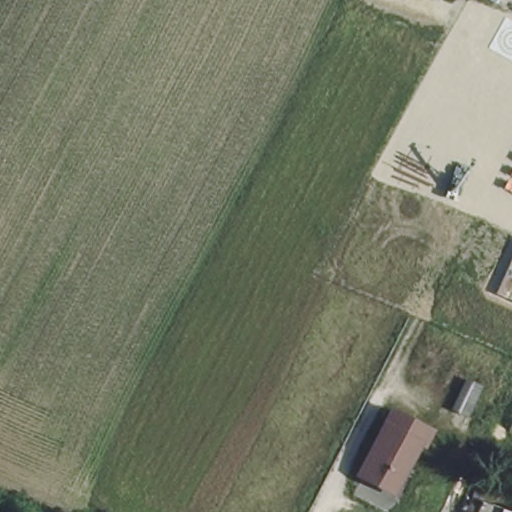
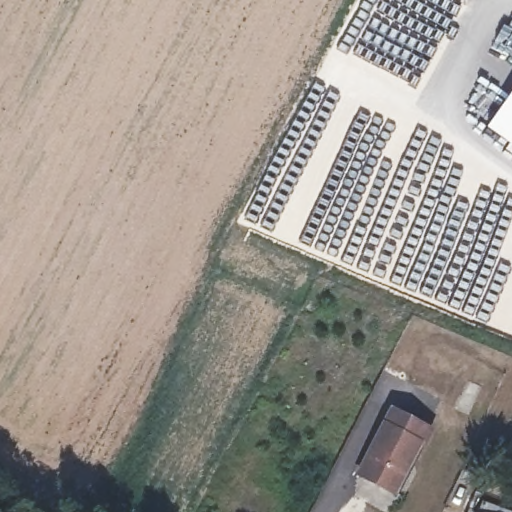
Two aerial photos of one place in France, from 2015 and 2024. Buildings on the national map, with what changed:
demolished [(512,4),(507,0),(512,0),(512,4)]
new [(512,80),(512,143),(481,121),(512,80)]
unchanged [(512,259),(512,301),(497,294),(512,259)]
unchanged [(465,373),(479,379),(465,408),(452,402),(465,373)]
unchanged [(390,403),(425,421),(392,485),(357,467),(390,403)]
unchanged [(488,512),(479,512),(480,510),(488,512)]

